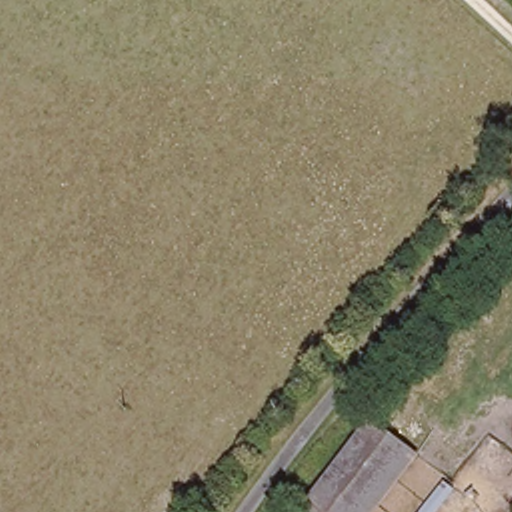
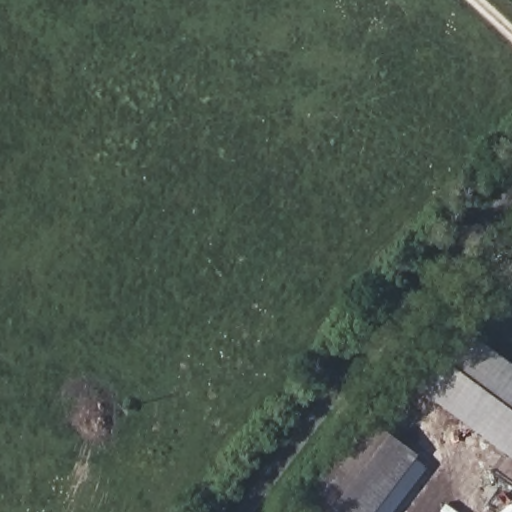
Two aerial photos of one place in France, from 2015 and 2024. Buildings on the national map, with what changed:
new [(407,380),(453,317),(512,361),(512,457),(407,380)]
unchanged [(380,512),(301,512),(376,425),(422,463),(380,512)]

